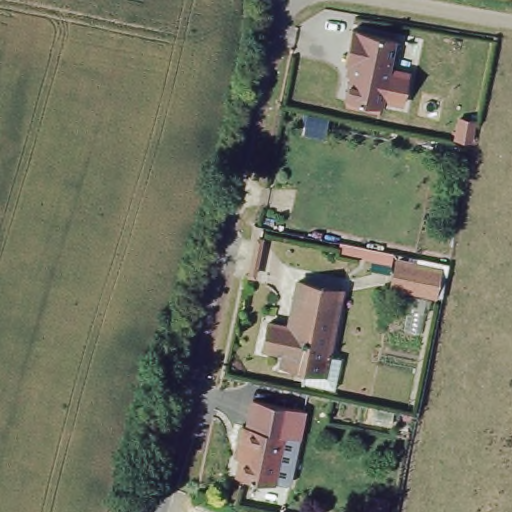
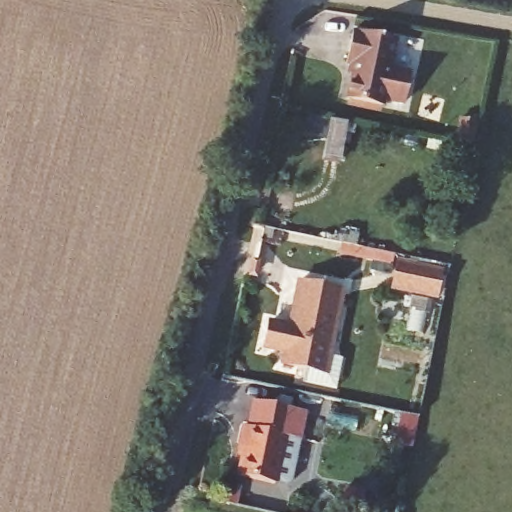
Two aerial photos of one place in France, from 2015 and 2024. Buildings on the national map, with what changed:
unchanged [(348,101),(354,69),(346,67),(355,31),(399,41),(392,69),(413,75),(406,108),(385,102),(383,108),(348,101)]
unchanged [(398,259),(448,272),(442,296),(442,299),(392,286),(392,284),(398,259)]
unchanged [(269,319),(289,324),(300,280),(345,291),(327,370),(282,359),(284,350),(262,345),(269,319)]
unchanged [(236,443),(240,426),(245,427),(252,398),(305,410),(298,439),(282,435),(270,484),(232,475),(237,457),(232,456),(236,443)]

